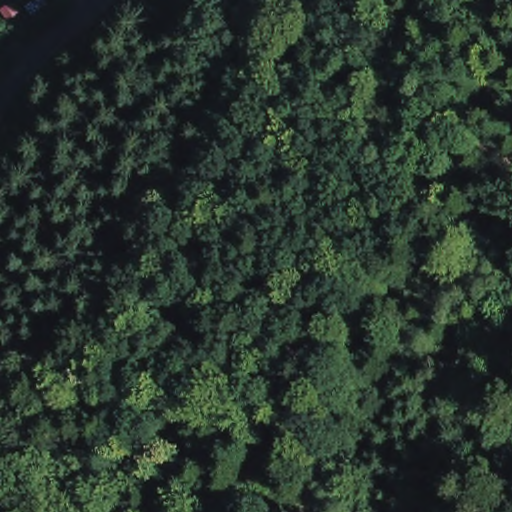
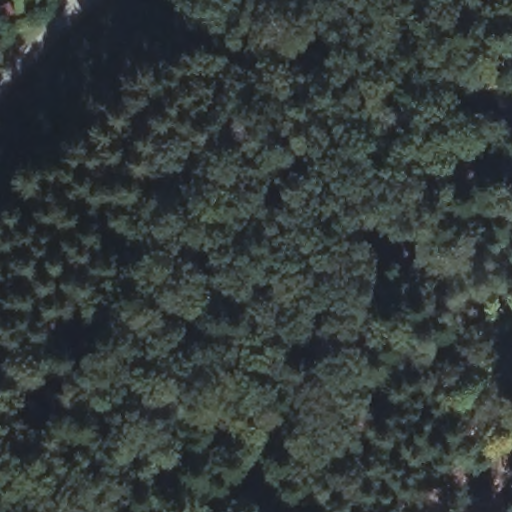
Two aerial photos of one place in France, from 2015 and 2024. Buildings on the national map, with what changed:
[]

